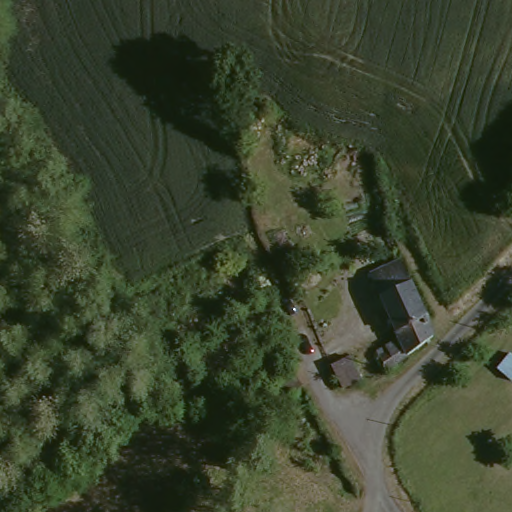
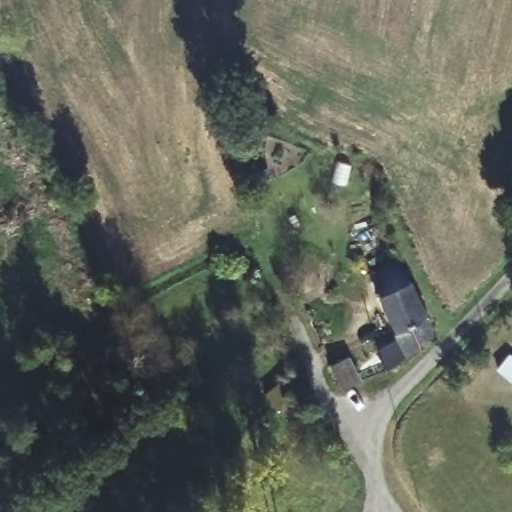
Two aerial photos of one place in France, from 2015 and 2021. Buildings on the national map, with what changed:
unchanged [(425,317),(395,332),(378,296),(366,270),(396,255),(408,281),(425,317)]
unchanged [(376,350),(398,339),(395,332),(425,317),(435,339),(386,370),(376,350)]
unchanged [(333,382),(327,367),(345,358),(357,384),(340,394),(333,382)]
unchanged [(267,401),(260,387),(290,374),(296,388),(267,401)]

